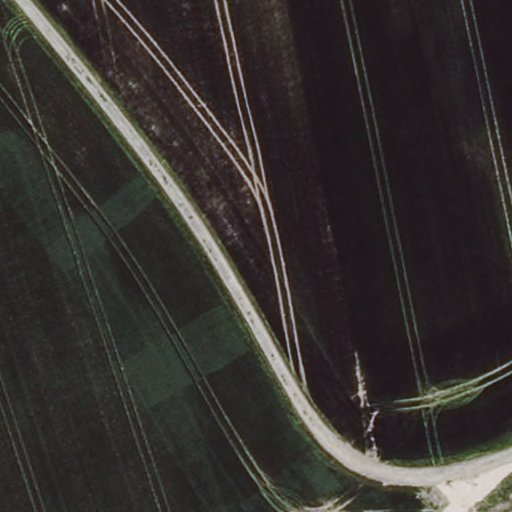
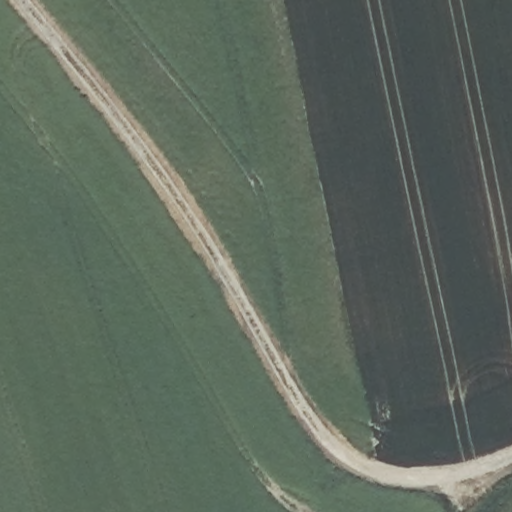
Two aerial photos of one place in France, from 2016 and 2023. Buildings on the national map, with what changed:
[]

